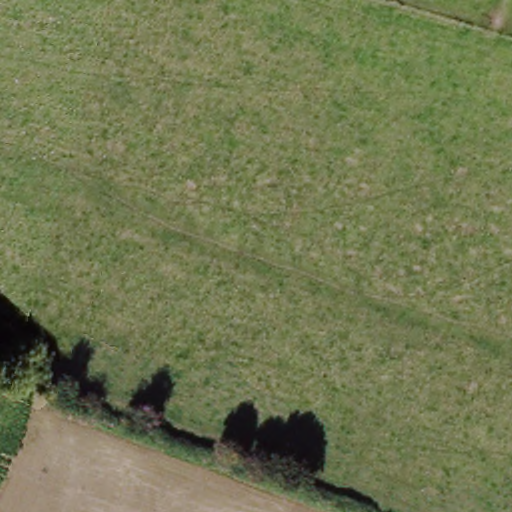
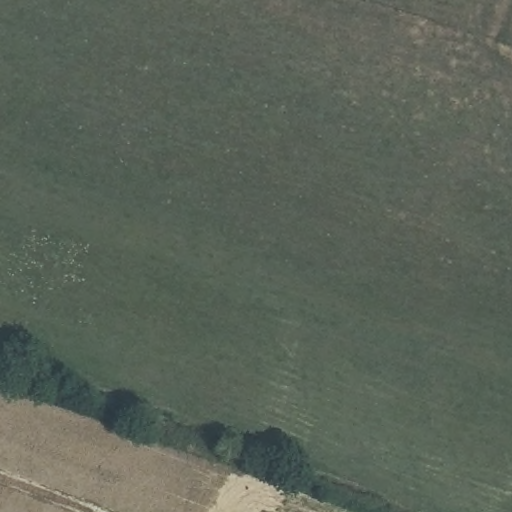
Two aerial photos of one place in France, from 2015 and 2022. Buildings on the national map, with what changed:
[]

